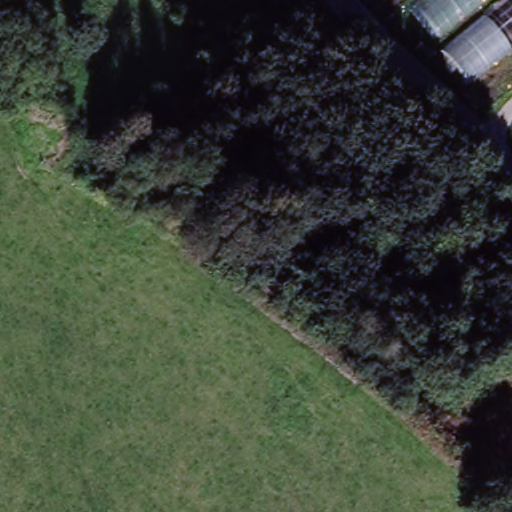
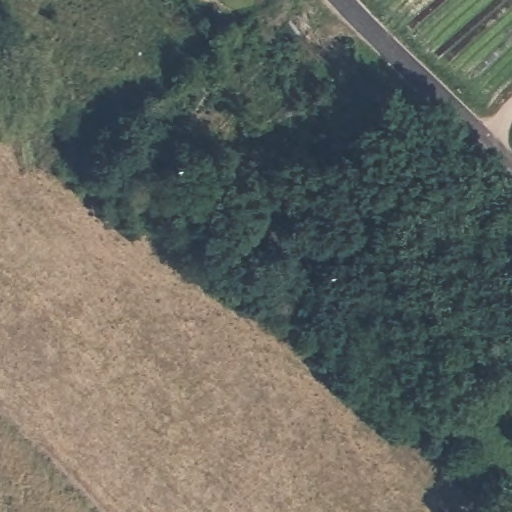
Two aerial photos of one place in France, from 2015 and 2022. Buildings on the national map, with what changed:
demolished [(438,53),(445,46),(410,8),(420,0),(512,0),(512,48),(467,84),(438,53)]
unchanged [(454,124),(467,139),(457,147),(445,133),(454,124)]

